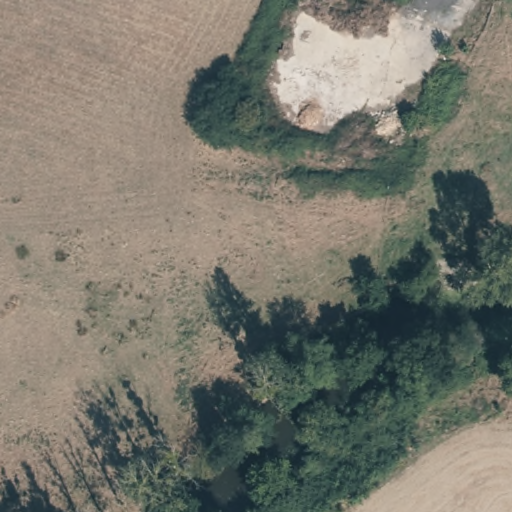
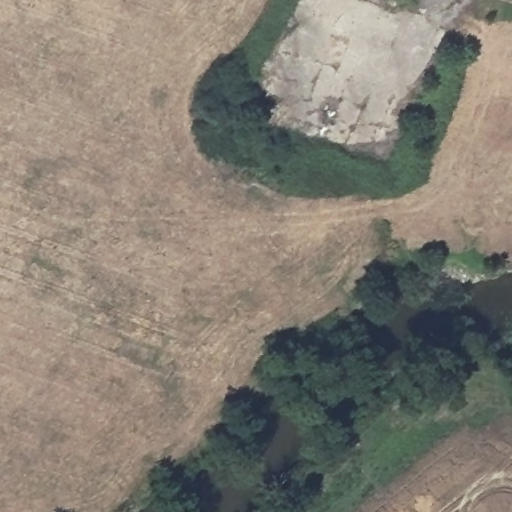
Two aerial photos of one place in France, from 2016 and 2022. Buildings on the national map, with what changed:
[]

